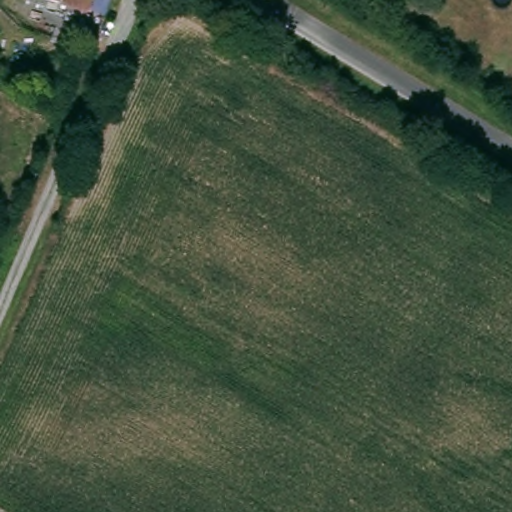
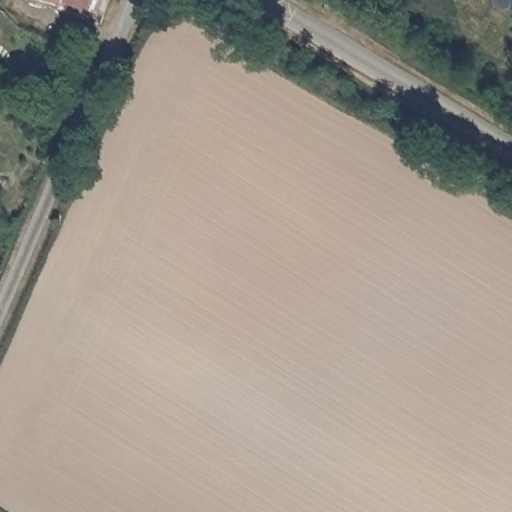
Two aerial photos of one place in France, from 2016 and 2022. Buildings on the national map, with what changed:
unchanged [(47,0),(94,0),(91,14),(47,0)]

